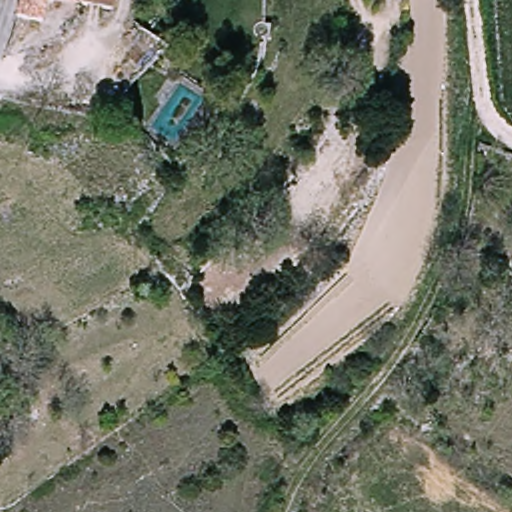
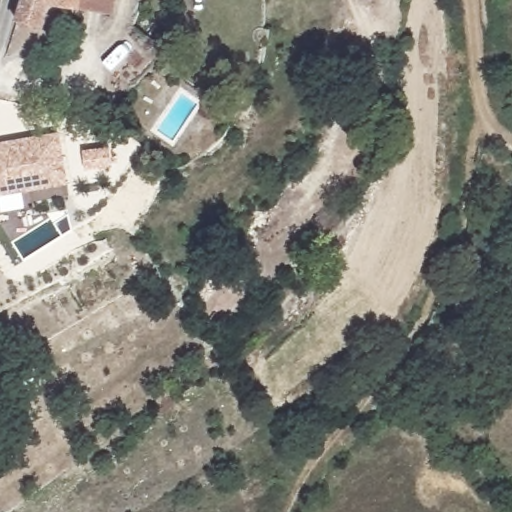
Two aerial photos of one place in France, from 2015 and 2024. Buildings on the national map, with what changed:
unchanged [(103,16),(70,11),(60,34),(35,26),(41,0),(107,0),(103,16)]
new [(60,135),(69,186),(0,197),(0,145),(60,135)]

